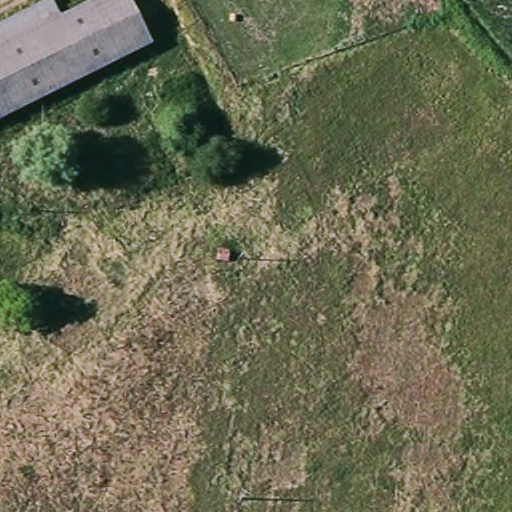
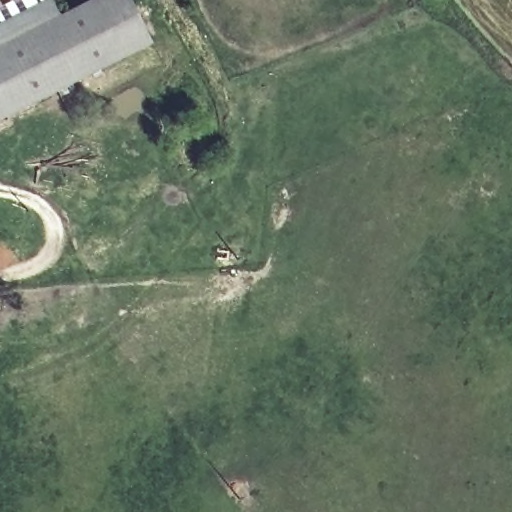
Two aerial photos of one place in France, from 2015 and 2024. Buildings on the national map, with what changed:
unchanged [(111,0),(128,0),(152,53),(0,121),(0,33),(57,6),(64,21),(111,0)]
unchanged [(210,241),(222,242),(220,256),(207,253),(210,241)]

